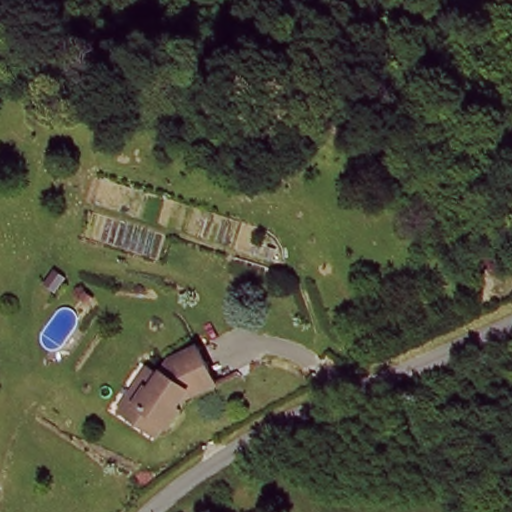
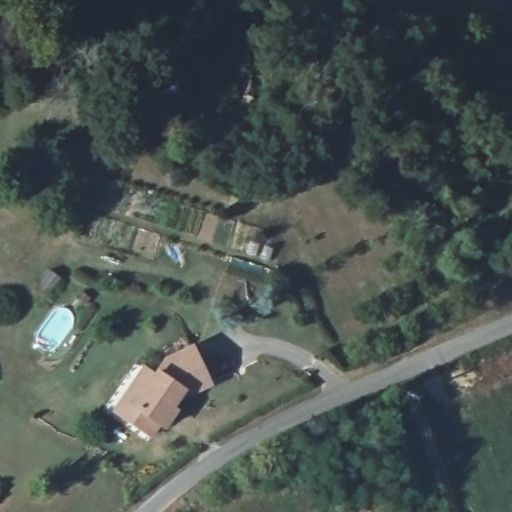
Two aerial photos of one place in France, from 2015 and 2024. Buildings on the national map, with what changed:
unchanged [(186,399),(166,427),(130,402),(146,382),(157,370),(199,345),(217,379),(211,383),(186,399)]

